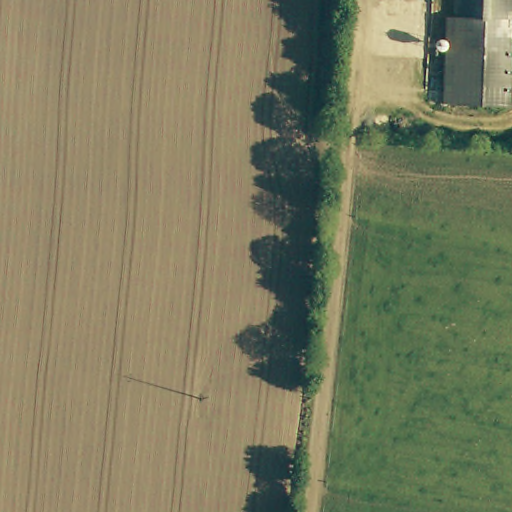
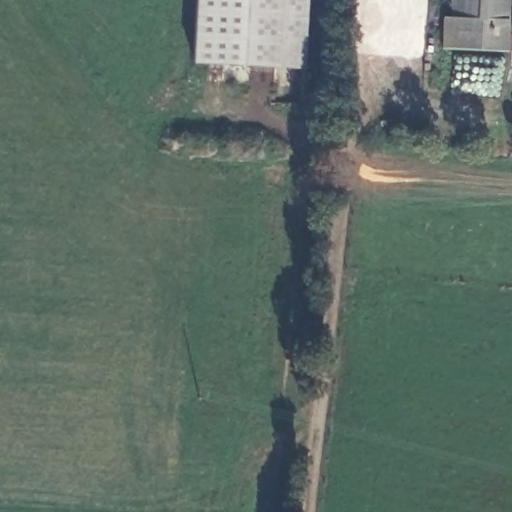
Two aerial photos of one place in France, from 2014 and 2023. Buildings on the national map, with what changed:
new [(305,68),(192,62),(195,0),(308,0),(305,68)]
unchanged [(501,57),(440,57),(444,15),(450,15),(450,0),(505,0),(501,57)]

